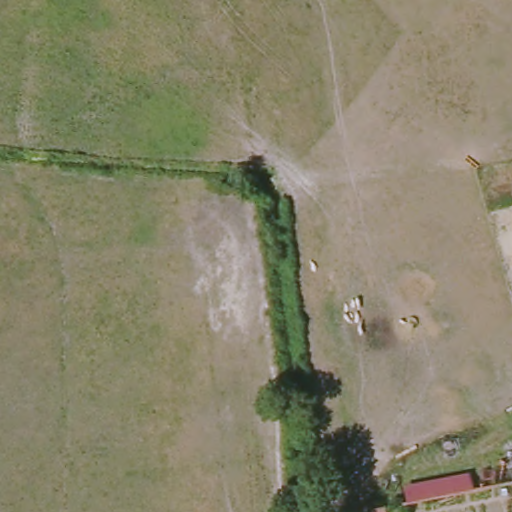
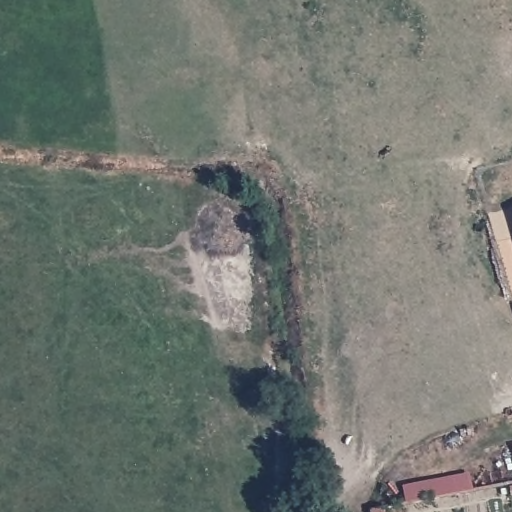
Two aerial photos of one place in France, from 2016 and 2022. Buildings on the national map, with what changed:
unchanged [(385,506),(386,512),(373,512),(372,509),(385,506)]

